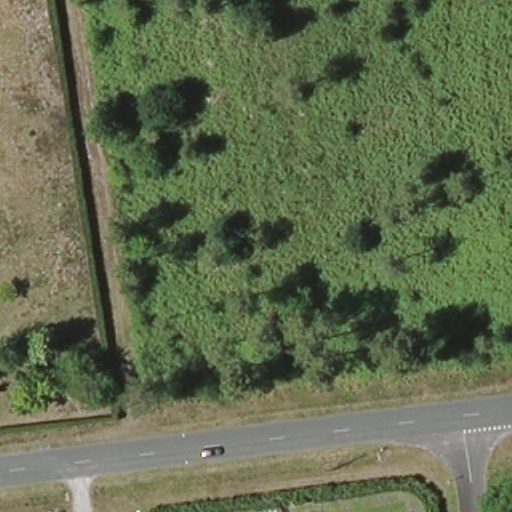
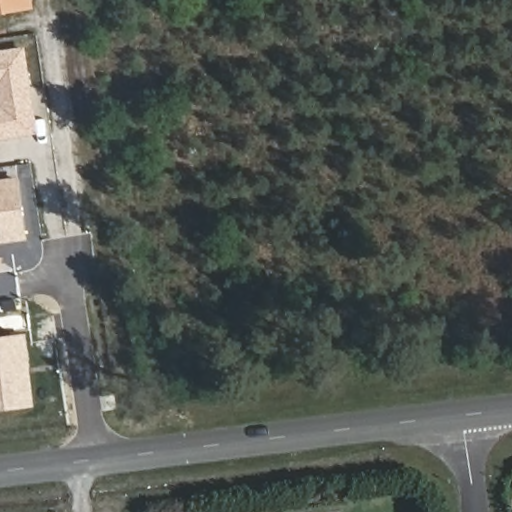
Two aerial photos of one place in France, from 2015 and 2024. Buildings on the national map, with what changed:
new [(34,0),(35,9),(0,14),(0,0),(34,0)]
new [(27,45),(40,133),(0,137),(0,104),(0,49),(27,45)]
new [(20,176),(28,239),(0,242),(0,179),(20,176)]
new [(35,406),(0,410),(0,336),(27,333),(35,406)]

